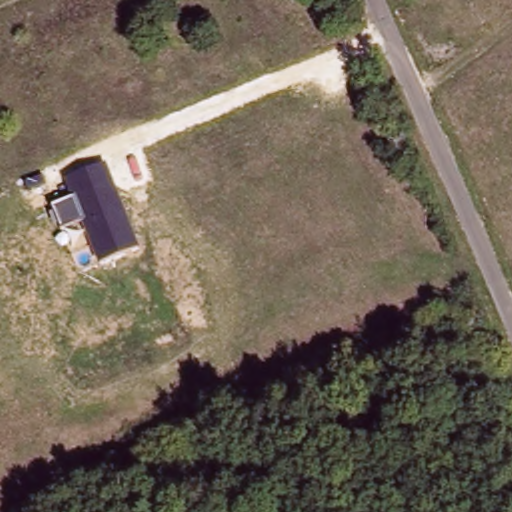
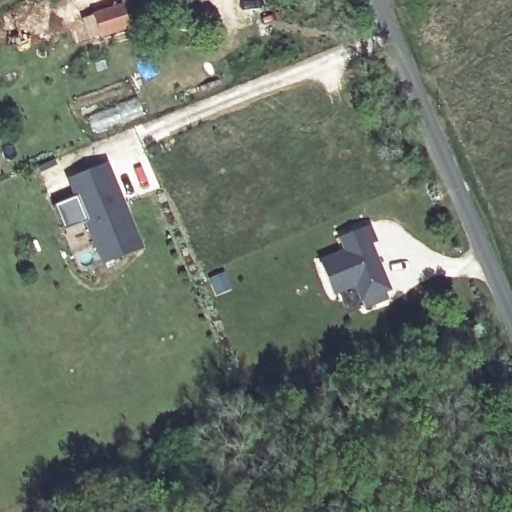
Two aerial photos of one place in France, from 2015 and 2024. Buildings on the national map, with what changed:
new [(119,7),(126,26),(90,39),(83,20),(119,7)]
unchanged [(143,248),(101,265),(85,220),(65,229),(55,204),(74,196),(68,179),(110,161),(143,248)]
new [(339,291),(332,295),(319,263),(345,253),(339,237),(367,226),(374,242),(369,245),(379,267),(387,290),(384,291),(387,298),(364,308),(348,314),(339,291)]

